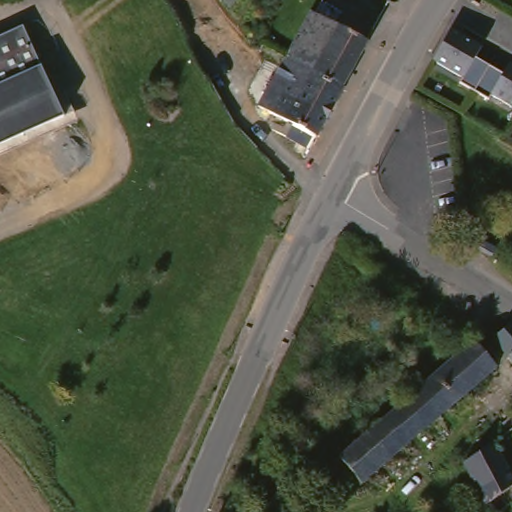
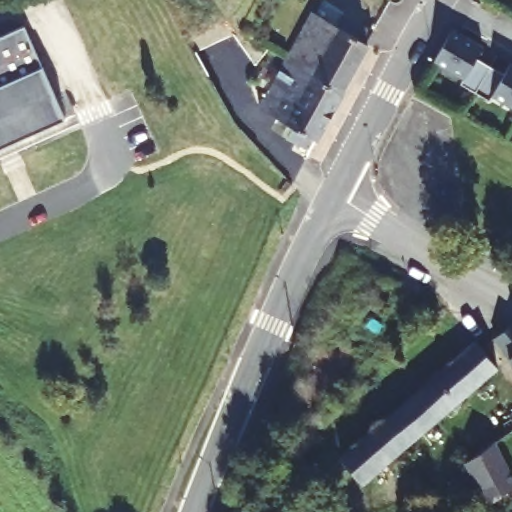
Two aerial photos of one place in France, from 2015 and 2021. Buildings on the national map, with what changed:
unchanged [(365,48),(341,95),(313,79),(311,78),(287,65),(315,16),(339,30),(348,15),(375,33),(365,48)]
unchanged [(24,24),(66,115),(0,146),(0,35),(24,24)]
unchanged [(425,60),(431,48),(442,27),(443,26),(468,40),(472,42),(481,47),(475,57),(497,70),(504,60),(512,65),(512,93),(461,78),(460,78),(425,60)]
unchanged [(290,143),(296,130),(261,113),(276,86),(261,79),(254,76),(259,64),(265,53),(287,65),(311,78),(313,79),(341,95),(318,141),(311,155),(290,143)]
unchanged [(480,98),(457,83),(461,78),(512,93),(512,107),(485,92),(480,98)]
unchanged [(495,249),(496,256),(482,257),(466,258),(465,250),(479,250),(495,249)]
unchanged [(512,365),(494,342),(509,332),(512,331),(512,365)]
unchanged [(475,345),(480,340),(502,366),(411,447),(391,419),(435,380),(475,345)]
unchanged [(381,473),(367,486),(350,469),(343,462),(391,419),(411,447),(381,473)]
unchanged [(476,479),(464,460),(493,439),(505,460),(512,471),(512,489),(491,504),(476,479)]

